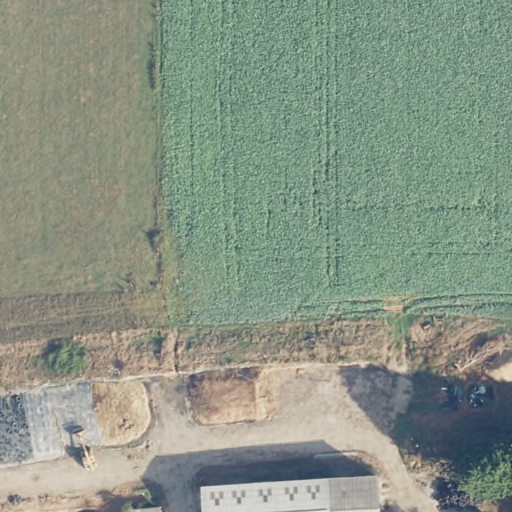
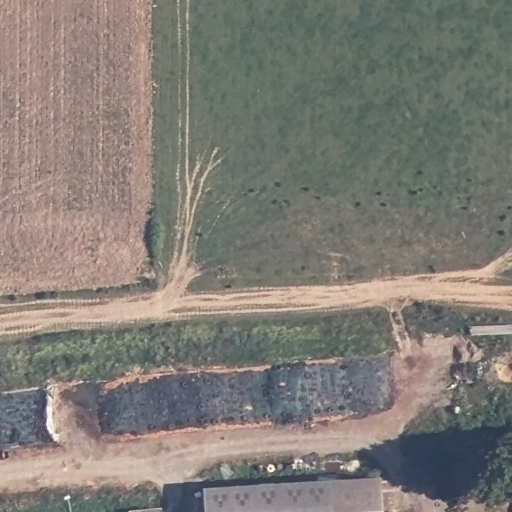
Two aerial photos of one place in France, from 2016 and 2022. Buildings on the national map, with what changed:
unchanged [(386,472),(390,512),(207,512),(206,485),(386,472)]
unchanged [(127,510),(162,507),(163,512),(127,512),(127,510)]

